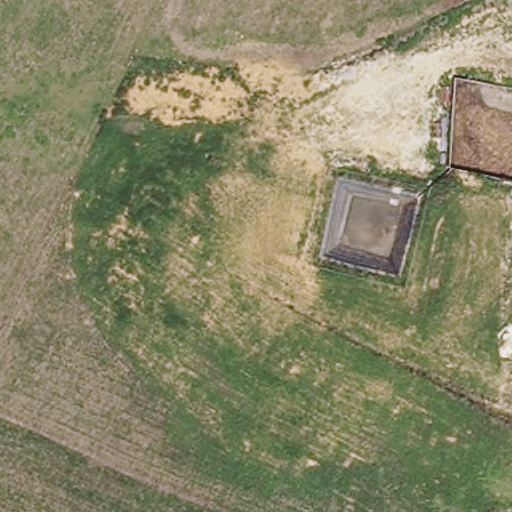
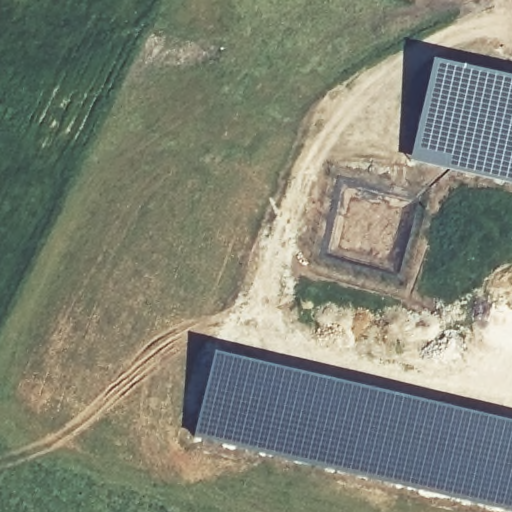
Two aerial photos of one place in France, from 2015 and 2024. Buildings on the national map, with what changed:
new [(512,84),(512,183),(410,163),(430,68),(512,84)]
new [(210,358),(512,425),(512,512),(434,494),(435,488),(465,493),(468,482),(416,473),(415,474),(410,474),(407,482),(394,484),(192,438),(210,358)]

